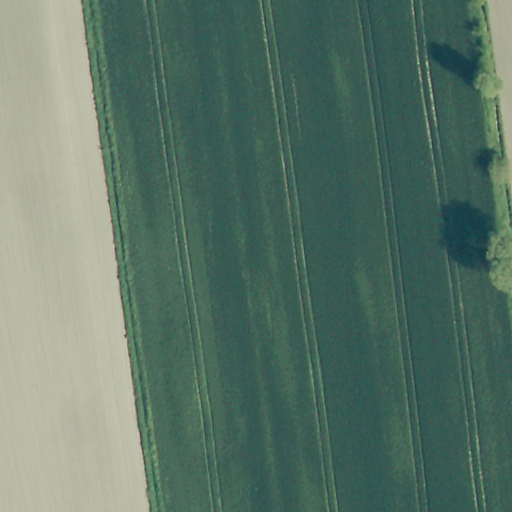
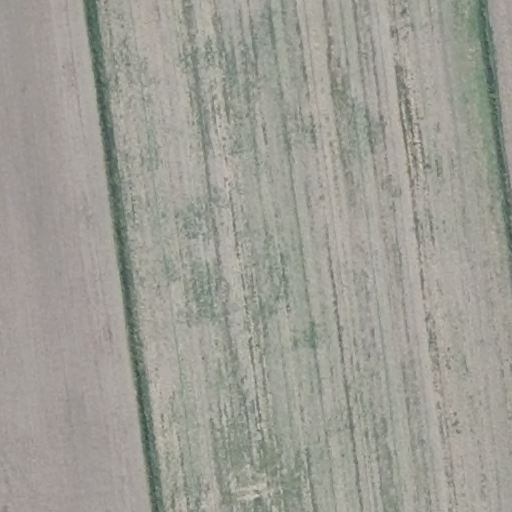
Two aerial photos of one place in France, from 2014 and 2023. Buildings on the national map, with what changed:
[]

